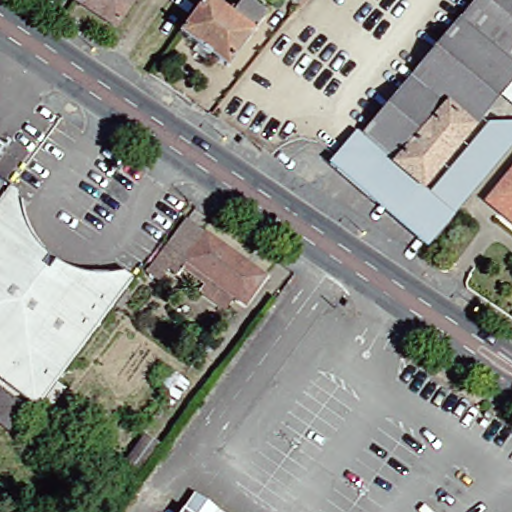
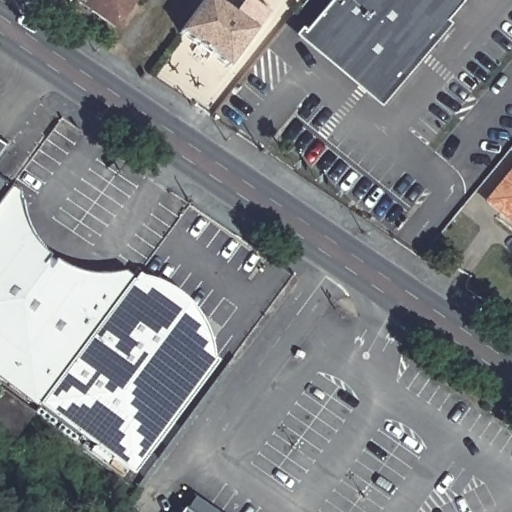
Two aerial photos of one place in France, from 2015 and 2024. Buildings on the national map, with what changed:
unchanged [(73,0),(128,0),(110,27),(72,1),(73,0)]
unchanged [(228,9),(234,0),(248,0),(260,9),(222,62),(174,27),(195,0),(217,0),(228,9)]
unchanged [(296,5),(291,0),(300,0),(296,5)]
new [(293,37),(299,30),(302,34),(331,0),(462,0),(443,22),(447,26),(378,108),(293,37)]
demolished [(384,166),(352,140),(449,24),(470,0),(512,0),(512,74),(511,75),(413,192),(391,220),(360,194),(384,166)]
demolished [(478,130),(512,129),(512,136),(444,219),(421,198),(478,130)]
demolished [(352,140),(384,166),(360,194),(324,162),(347,136),(352,140)]
unchanged [(512,165),(512,226),(482,201),(512,165)]
unchanged [(0,189),(0,184),(2,186),(0,189)]
unchanged [(15,244),(39,261),(0,314),(0,189),(2,186),(8,190),(15,244)]
demolished [(421,198),(444,219),(444,220),(422,246),(391,220),(413,192),(421,198)]
demolished [(261,277),(240,307),(228,298),(180,262),(176,267),(171,275),(163,268),(152,281),(141,271),(180,220),(198,232),(261,277)]
unchanged [(0,314),(39,261),(46,266),(0,329),(0,314)]
unchanged [(45,390),(36,402),(33,407),(0,382),(0,329),(46,266),(69,284),(121,276),(126,281),(51,382),(45,390)]
new [(113,460),(39,405),(136,274),(197,319),(199,333),(211,342),(199,359),(200,372),(147,445),(128,470),(113,460)]
unchanged [(0,429),(0,393),(28,413),(10,436),(0,429)]
unchanged [(189,493),(216,512),(183,512),(179,509),(189,495),(189,493)]
unchanged [(183,512),(177,512),(179,509),(183,512)]

